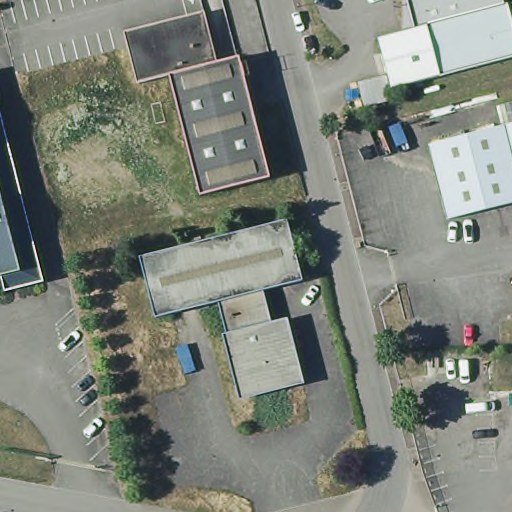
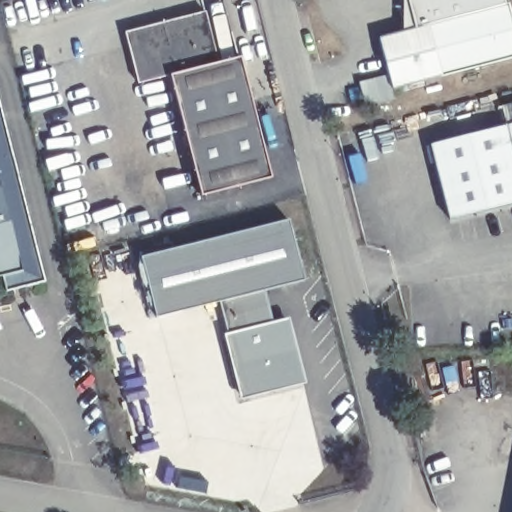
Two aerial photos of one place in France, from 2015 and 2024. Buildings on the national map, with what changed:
unchanged [(444,75),(430,28),(417,31),(408,0),(504,0),(506,1),(507,5),(511,4),(512,9),(512,54),(444,75)]
unchanged [(170,73),(142,80),(130,31),(207,12),(219,61),(170,73)]
unchanged [(384,104),(377,80),(392,75),(382,42),(417,31),(430,28),(444,75),(396,90),(399,100),(384,104)]
unchanged [(219,61),(238,57),(267,179),(198,195),(170,73),(219,61)]
unchanged [(4,62),(59,273),(20,283),(17,270),(36,265),(0,124),(0,63),(4,62)]
unchanged [(36,265),(17,270),(0,274),(0,124),(36,265)]
unchanged [(512,200),(445,219),(426,147),(493,129),(512,200)]
unchanged [(224,300),(159,316),(143,251),(285,215),(301,280),(260,291),(224,300)]
unchanged [(260,291),(269,328),(289,323),(304,380),(245,395),(230,337),(234,336),(224,300),(260,291)]

